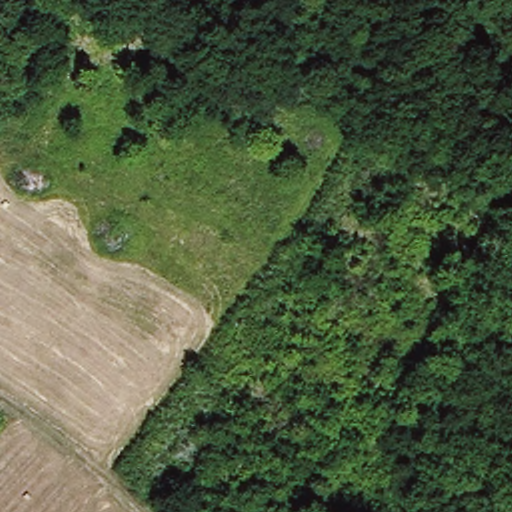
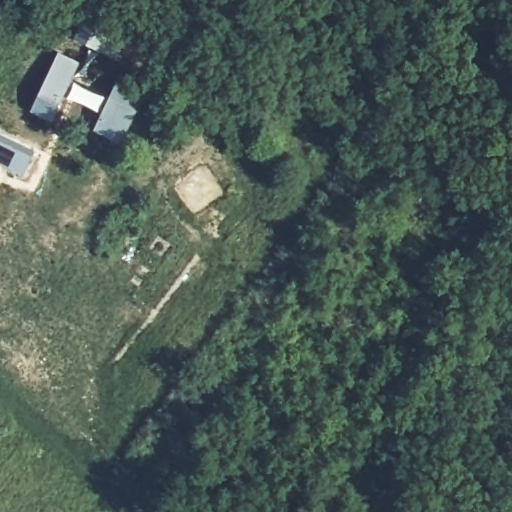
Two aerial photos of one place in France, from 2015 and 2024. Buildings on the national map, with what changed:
new [(57,52),(77,62),(70,78),(108,96),(115,80),(143,93),(119,145),(91,132),(99,115),(62,98),(50,122),(28,111),(57,52)]

